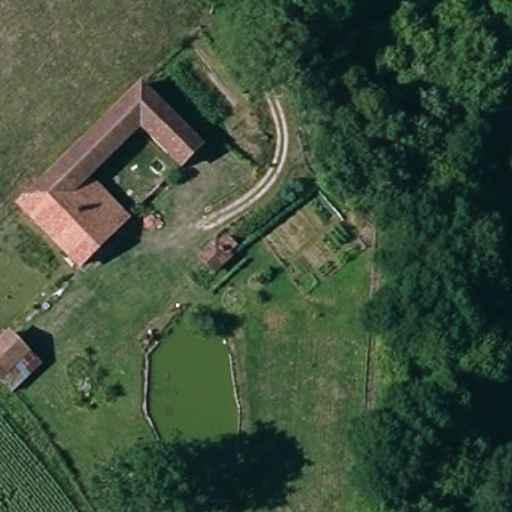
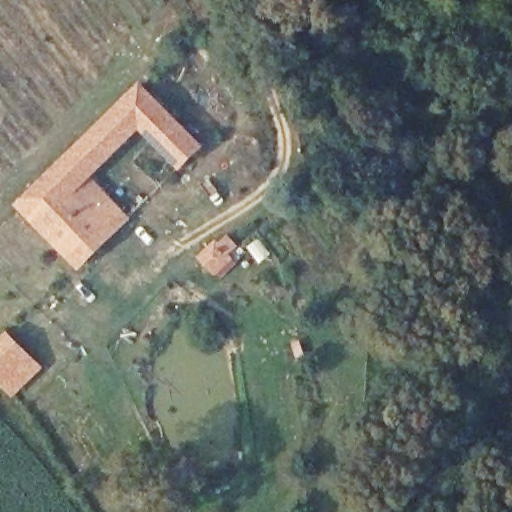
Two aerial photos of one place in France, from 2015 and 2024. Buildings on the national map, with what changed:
unchanged [(207,147),(182,170),(146,134),(95,182),(129,220),(80,266),(21,208),(37,194),(104,128),(147,88),(207,147)]
unchanged [(215,249),(220,255),(226,249),(235,257),(215,282),(200,265),(215,249)]
unchanged [(21,340),(41,360),(19,381),(13,388),(0,374),(0,360),(21,340)]

